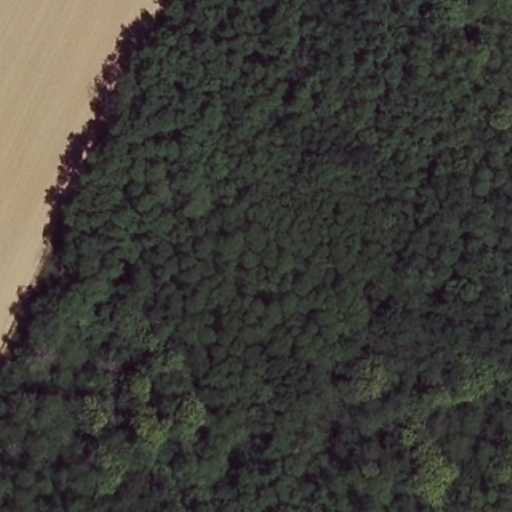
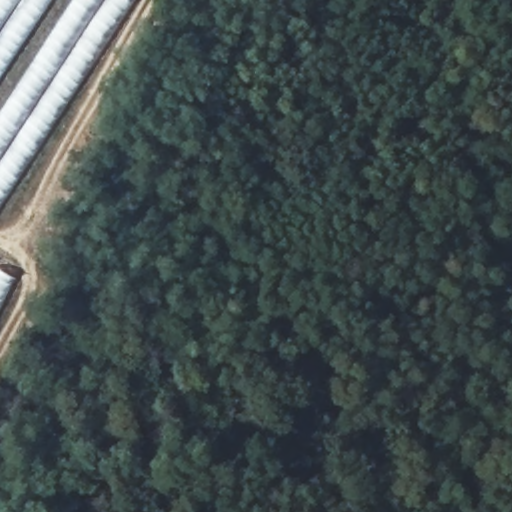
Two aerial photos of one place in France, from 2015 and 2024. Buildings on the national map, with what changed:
new [(0,205),(0,0),(135,0),(0,205)]
new [(0,314),(0,271),(17,279),(0,314)]

